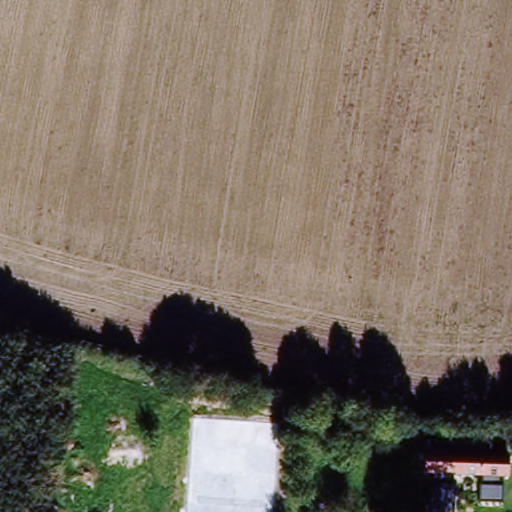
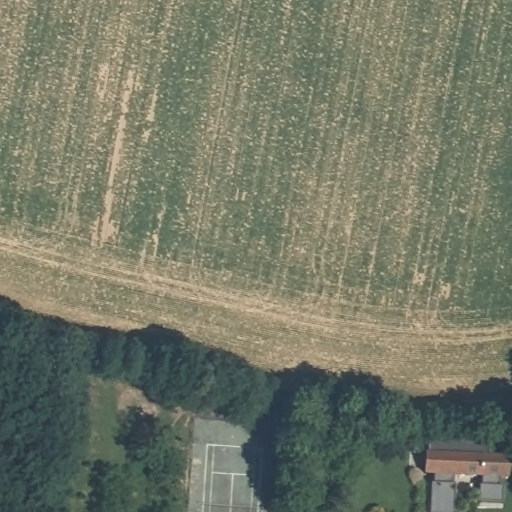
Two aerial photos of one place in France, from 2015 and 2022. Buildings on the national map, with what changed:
unchanged [(492,456),(510,459),(510,479),(500,479),(500,487),(502,487),(502,503),(478,503),(479,479),(454,478),(452,512),(428,512),(432,476),(422,476),(427,442),(492,445),(492,456)]

